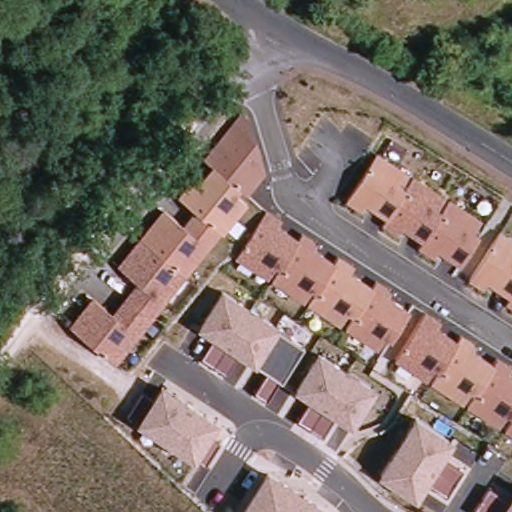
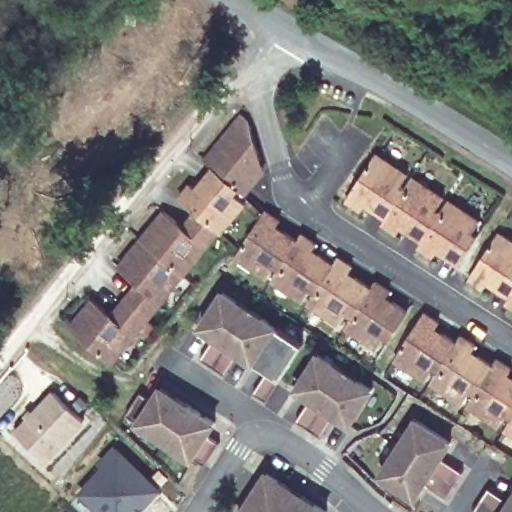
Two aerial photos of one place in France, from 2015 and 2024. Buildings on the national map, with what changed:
unchanged [(68,326),(94,295),(114,311),(138,281),(119,266),(164,208),(184,224),(195,210),(178,197),(190,181),(196,185),(212,166),(203,159),(240,111),(250,118),(268,173),(250,195),(242,189),(238,194),(249,203),(226,234),(222,232),(116,363),(68,326)]
unchanged [(460,263),(438,250),(434,256),(419,246),(423,240),(403,228),(400,234),(382,224),(386,218),(367,206),(363,212),(346,201),(377,152),(481,220),(475,230),(479,233),(460,263)]
unchanged [(235,258),(267,209),(283,219),(277,228),(298,241),(303,232),(318,242),(313,249),(334,263),(338,256),(354,267),(350,273),(373,288),(377,280),(393,290),(388,298),(409,310),(390,342),(384,339),(377,350),(235,258)]
unchanged [(509,296),(489,284),(486,290),(470,280),(500,231),(512,239),(512,307),(505,303),(509,296)]
unchanged [(304,343),(281,381),(268,401),(254,393),(268,371),(239,355),(226,375),(200,360),(212,339),(196,329),(221,290),(304,343)]
unchanged [(426,311),(443,322),(441,327),(458,339),(462,334),(479,345),(476,350),(494,362),(497,357),(512,366),(512,435),(395,360),(426,311)]
unchanged [(377,388),(353,428),(335,418),(323,435),(297,419),(310,400),(293,390),(318,350),(377,388)]
unchanged [(219,422),(210,437),(221,441),(205,466),(193,459),(136,423),(126,416),(142,391),(153,397),(160,385),(219,422)]
new [(53,392),(84,421),(46,461),(16,432),(53,392)]
unchanged [(455,443),(444,458),(463,470),(448,495),(427,484),(416,502),(377,476),(416,417),(455,443)]
new [(105,469),(101,465),(116,449),(160,490),(139,512),(102,512),(82,493),(105,469)]
unchanged [(330,512),(240,512),(267,470),(330,512)]
unchanged [(489,488),(510,499),(512,495),(512,512),(473,512),(489,488)]

